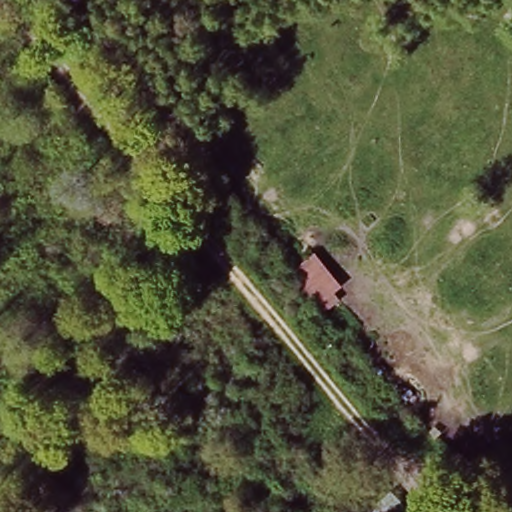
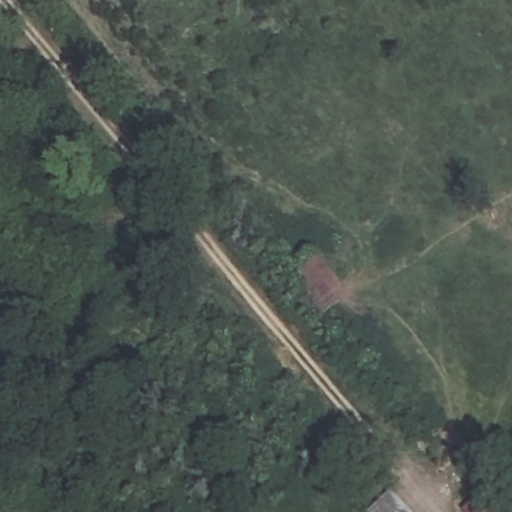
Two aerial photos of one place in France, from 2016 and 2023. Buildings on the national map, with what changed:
unchanged [(344,287),(336,292),(340,297),(321,310),(291,273),(315,252),(344,287)]

